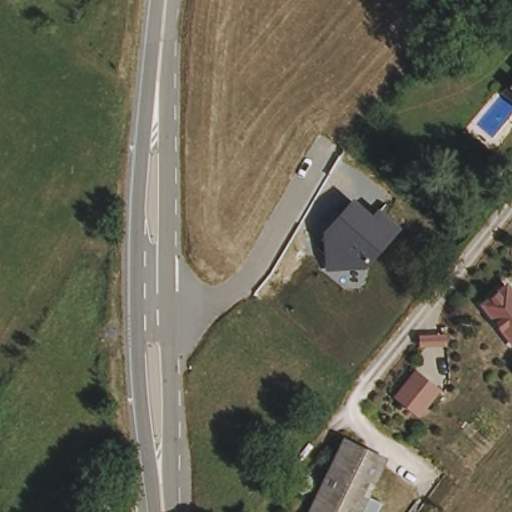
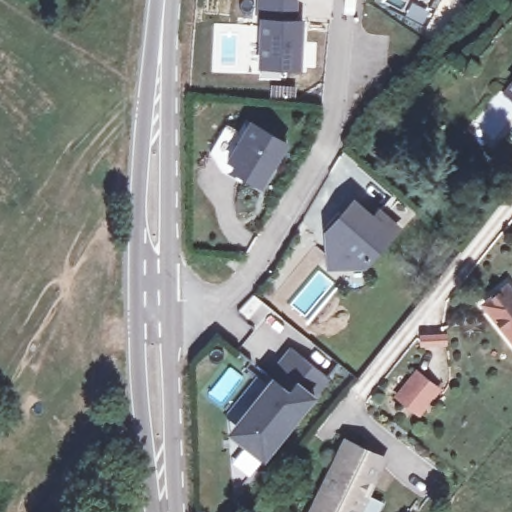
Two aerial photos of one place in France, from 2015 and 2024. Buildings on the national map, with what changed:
new [(298,0),(298,20),(305,20),(303,70),(258,69),(260,17),(259,0),(298,0)]
unchanged [(512,75),(512,97),(501,87),(512,75)]
new [(229,121),(241,128),(248,116),(253,119),(232,157),(250,167),(247,172),(244,179),(223,167),(213,150),(229,121)]
unchanged [(253,119),(289,140),(278,159),(273,156),(270,162),(274,165),(264,182),(247,172),(250,167),(232,157),(253,119)]
unchanged [(324,234),(354,197),(374,215),(379,207),(401,228),(366,268),(327,270),(324,234)]
unchanged [(512,293),(512,340),(483,302),(506,285),(512,293)]
new [(263,392),(267,395),(274,386),(268,382),(287,357),(324,387),(267,457),(249,442),(233,429),(244,416),(263,392)]
unchanged [(436,388),(417,412),(396,395),(415,371),(436,388)]
unchanged [(327,472),(340,446),(353,452),(376,463),(358,499),(376,508),(373,512),(306,512),(327,472)]

